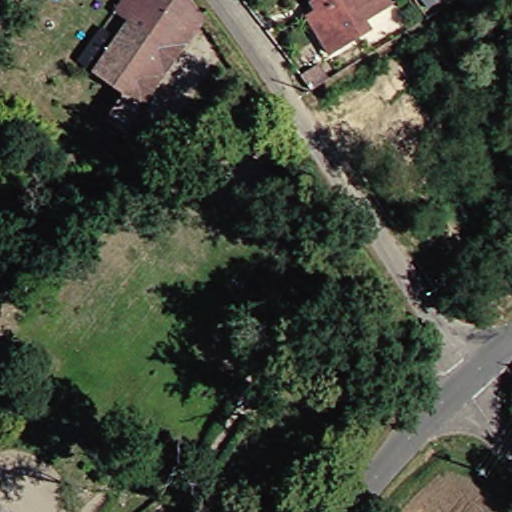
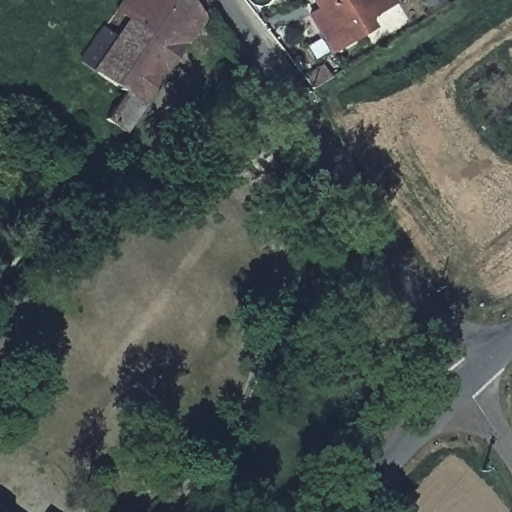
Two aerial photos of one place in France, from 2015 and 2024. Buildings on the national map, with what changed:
unchanged [(127,134),(111,125),(120,112),(123,107),(132,94),(125,90),(110,79),(103,74),(100,72),(107,62),(122,41),(124,37),(127,33),(138,17),(124,7),(125,5),(129,0),(199,0),(202,4),(204,8),(208,13),(209,15),(189,43),(148,105),(134,124),(127,134)]
unchanged [(365,30),(335,48),(313,12),(323,7),(318,0),(391,0),(370,14),(376,24),(365,30)]

